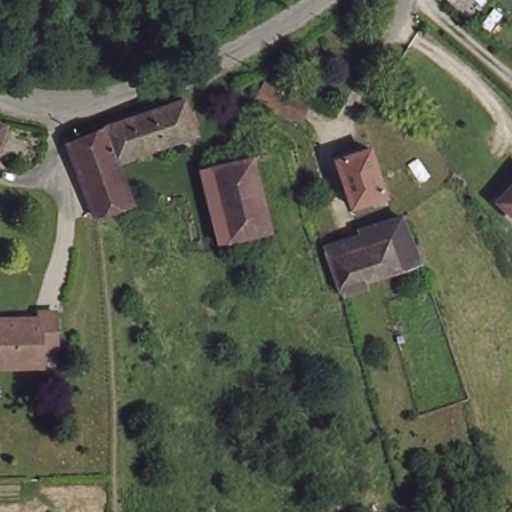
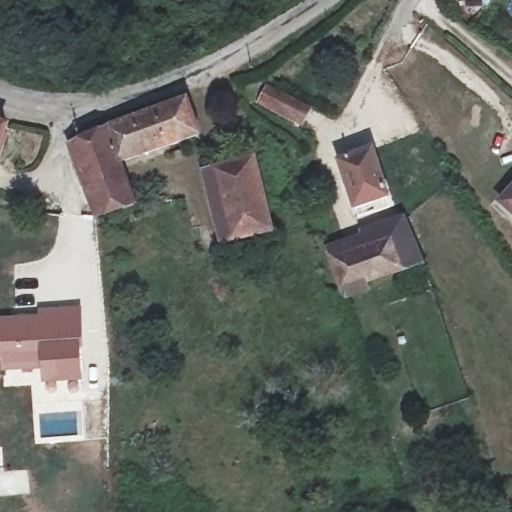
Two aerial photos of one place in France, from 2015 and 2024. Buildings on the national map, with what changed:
unchanged [(252,101),(260,89),(303,111),(295,124),(252,101)]
unchanged [(70,138),(188,96),(200,130),(122,155),(137,200),(126,203),(95,210),(71,142),(70,138)]
unchanged [(7,125),(0,151),(0,122),(7,125)]
unchanged [(373,148),(387,193),(355,201),(341,155),(373,148)]
unchanged [(273,226),(253,230),(220,237),(215,219),(200,168),(212,165),(253,156),(273,226)]
unchanged [(512,183),(512,229),(490,209),(512,183)]
unchanged [(195,198),(200,218),(190,219),(187,200),(195,198)]
unchanged [(405,285),(400,269),(360,278),(363,287),(345,291),(332,249),(371,239),(368,225),(407,216),(412,228),(417,242),(432,275),(405,285)]
unchanged [(10,366),(10,357),(10,353),(0,353),(0,315),(17,314),(17,324),(46,322),(45,308),(60,306),(60,344),(45,344),(45,356),(45,364),(10,366)]

